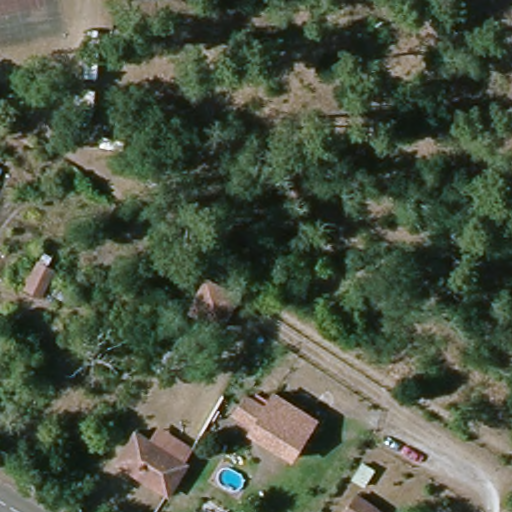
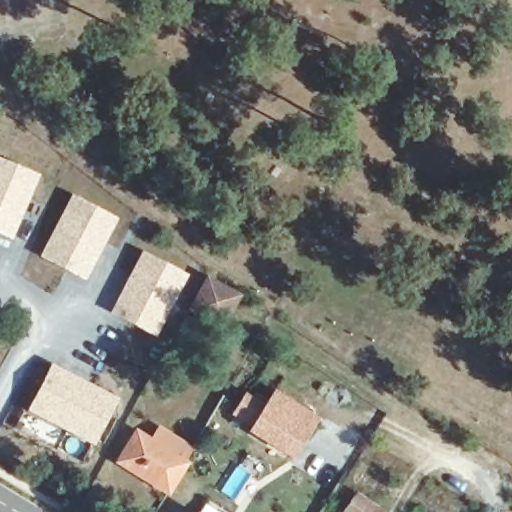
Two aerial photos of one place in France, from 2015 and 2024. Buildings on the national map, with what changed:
new [(39,176),(12,241),(0,236),(0,160),(39,176)]
new [(119,220),(87,282),(39,259),(72,196),(119,220)]
new [(188,278),(155,337),(109,314),(141,252),(188,278)]
unchanged [(186,313),(204,279),(208,282),(207,286),(234,301),(218,331),(206,324),(186,313)]
new [(118,398),(93,447),(27,412),(51,366),(118,398)]
unchanged [(253,404),(252,397),(259,395),(261,402),(253,404)]
unchanged [(289,462),(248,436),(250,433),(232,421),(243,403),(262,415),(271,399),(312,424),(289,462)]
unchanged [(130,435),(146,445),(152,434),(173,447),(167,458),(176,463),(177,465),(159,494),(112,465),(130,435)]
unchanged [(353,496),(376,512),(342,512),(353,496)]

